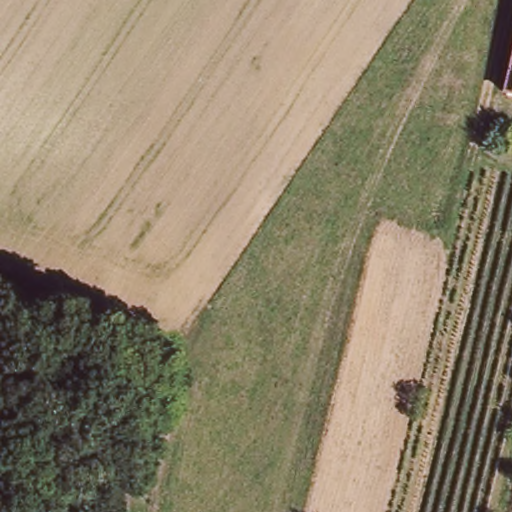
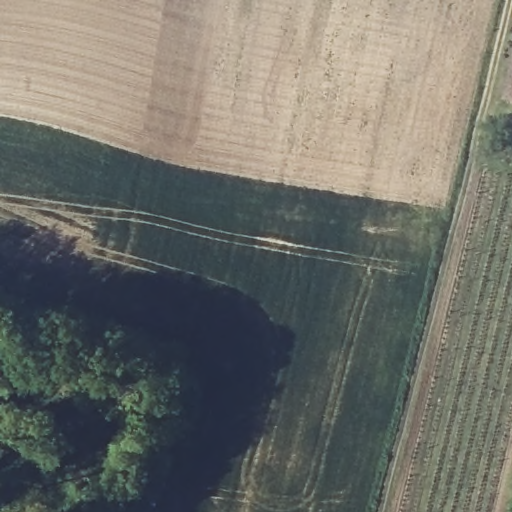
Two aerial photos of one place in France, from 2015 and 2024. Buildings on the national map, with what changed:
unchanged [(511,91),(512,86),(512,91),(511,91)]

